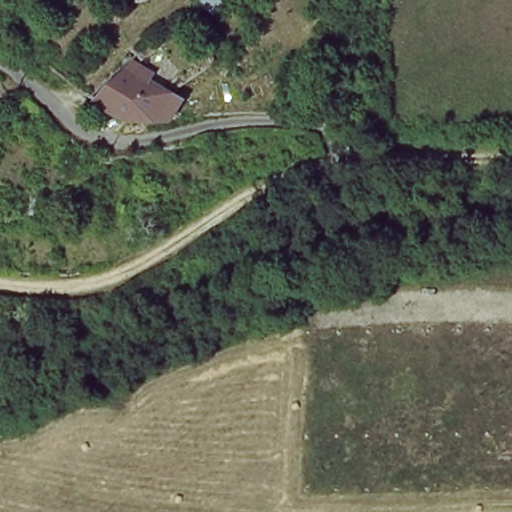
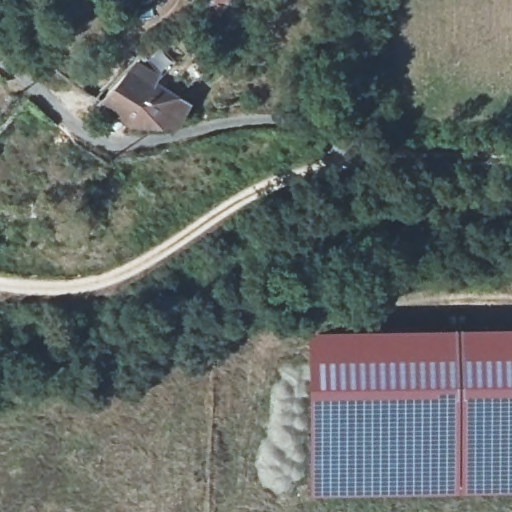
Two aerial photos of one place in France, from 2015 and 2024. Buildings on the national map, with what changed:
unchanged [(223,15),(199,1),(200,0),(232,0),(223,15)]
unchanged [(161,73),(157,79),(190,99),(175,125),(127,124),(99,100),(137,58),(161,73)]
unchanged [(3,242),(0,260),(0,242),(3,242)]
new [(512,499),(315,499),(319,330),(512,328),(512,499)]

